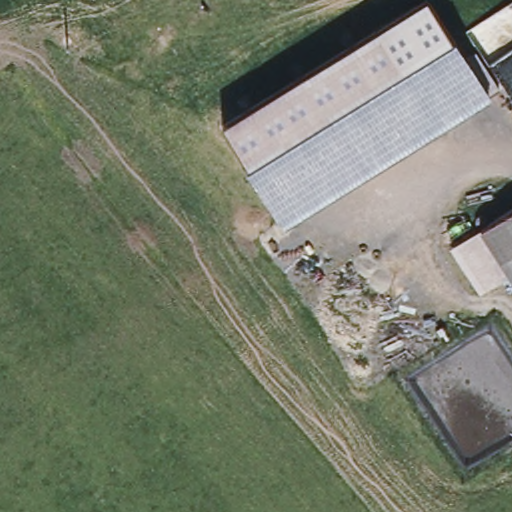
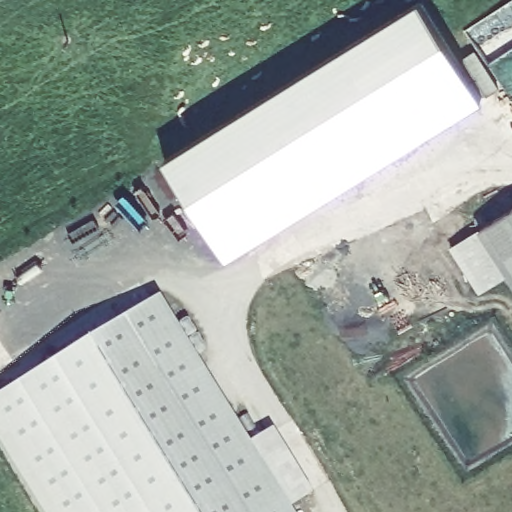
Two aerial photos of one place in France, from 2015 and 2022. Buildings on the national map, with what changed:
unchanged [(436,126),(422,103),(375,24),(417,0),(426,0),(486,96),(436,126)]
unchanged [(422,103),(436,126),(284,221),(269,196),(221,121),(375,24),(422,103)]
unchanged [(512,204),(512,277),(478,224),(512,204)]
new [(269,430),(311,496),(287,510),(289,512),(39,512),(0,450),(0,394),(155,298),(245,445),(269,430)]

